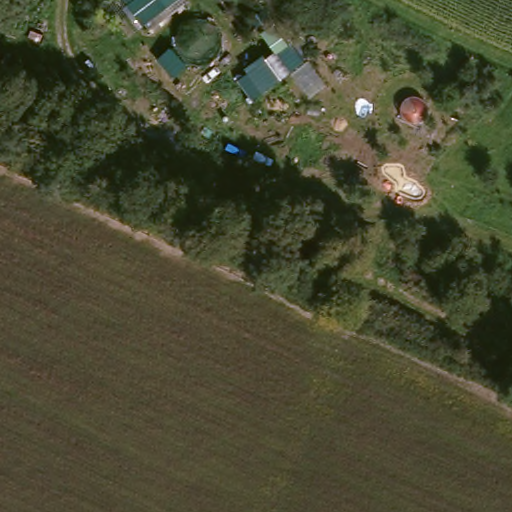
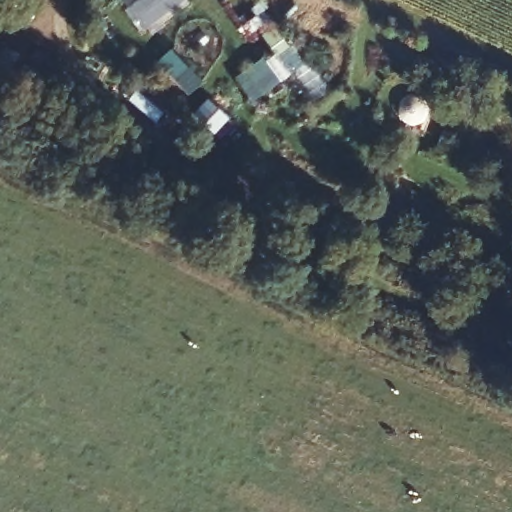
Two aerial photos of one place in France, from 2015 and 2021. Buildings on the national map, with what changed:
unchanged [(121,0),(179,0),(141,27),(121,0)]
unchanged [(305,62),(254,103),(238,82),(247,74),(245,71),(264,57),(266,59),(275,51),(261,35),(273,25),(305,62)]

